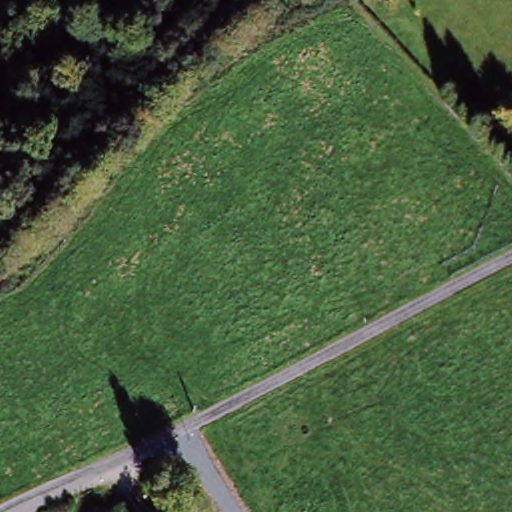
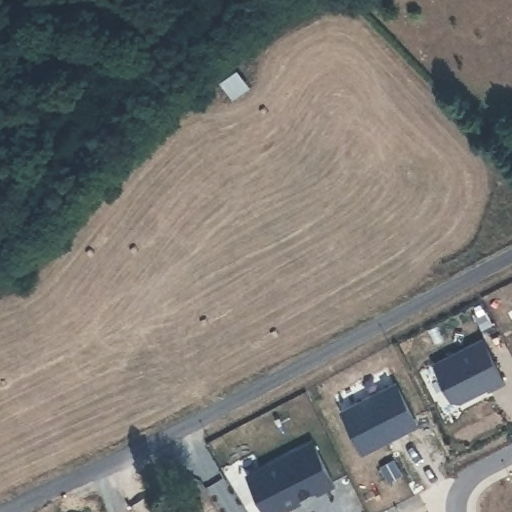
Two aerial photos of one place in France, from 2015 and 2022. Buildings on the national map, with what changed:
new [(503,379),(488,386),(487,384),(459,398),(452,396),(435,363),(483,339),(503,379)]
new [(361,449),(340,411),(393,383),(413,421),(361,449)]
new [(332,481),(316,490),(315,486),(285,501),(284,507),(274,512),(270,512),(266,511),(248,475),(312,442),(332,481)]
new [(284,507),(285,501),(297,495),(300,499),(284,507)]

